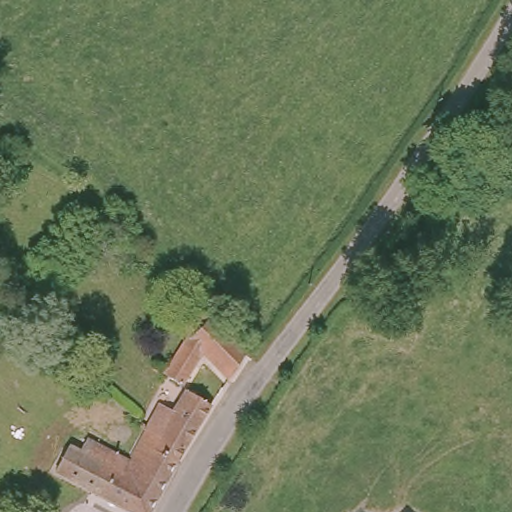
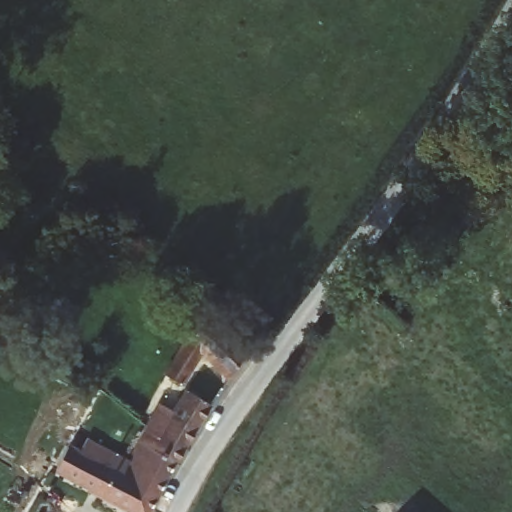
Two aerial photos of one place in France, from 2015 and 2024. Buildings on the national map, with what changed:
unchanged [(240,358),(225,381),(197,356),(176,388),(161,380),(162,379),(187,340),(202,322),(240,358)]
unchanged [(167,419),(181,395),(206,409),(169,465),(145,452),(140,461),(130,456),(144,431),(154,412),(167,419)]
unchanged [(130,456),(140,461),(145,452),(169,465),(145,512),(126,512),(50,474),(65,452),(76,458),(83,445),(112,459),(125,466),(130,456)]

